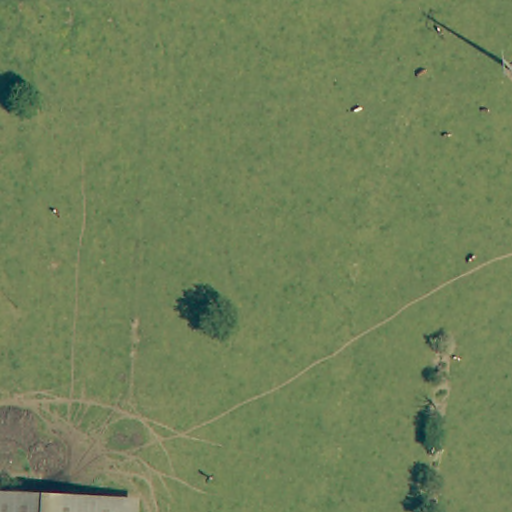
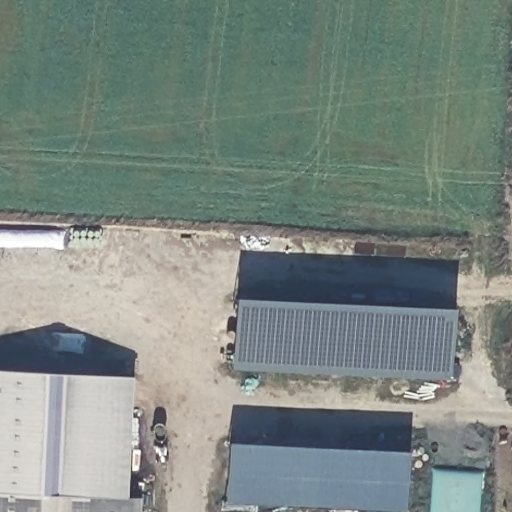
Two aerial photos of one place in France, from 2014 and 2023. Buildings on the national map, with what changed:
new [(0,493),(0,371),(131,377),(127,498),(0,493)]
new [(407,450),(403,511),(224,502),(226,442),(407,450)]
unchanged [(127,498),(126,512),(0,512),(0,493),(127,498)]
new [(141,499),(140,512),(126,512),(127,498),(140,498),(141,499)]

